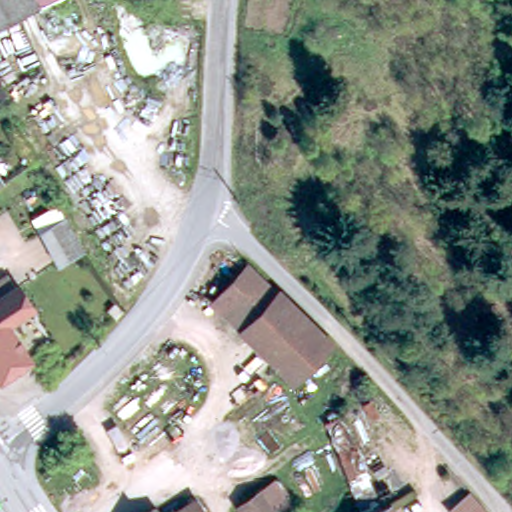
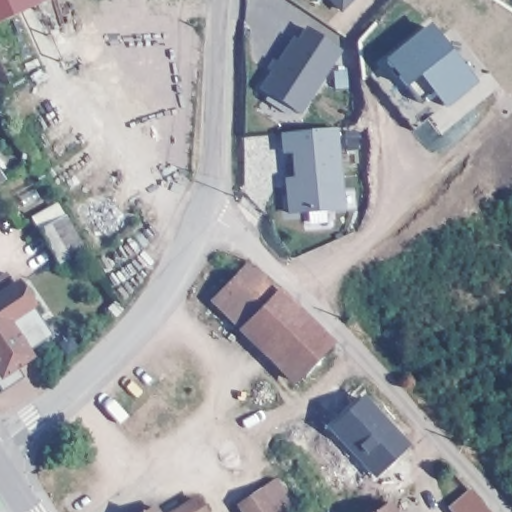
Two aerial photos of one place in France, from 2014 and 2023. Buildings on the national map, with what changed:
unchanged [(50,0),(0,22),(0,0),(50,0)]
new [(327,0),(355,0),(340,15),(327,0)]
new [(275,63),(292,39),(297,41),(305,29),(342,52),(300,117),(257,90),(267,72),(264,70),(270,61),(275,63)]
new [(470,84),(442,107),(431,94),(417,104),(405,87),(385,63),(426,30),(470,84)]
new [(338,129),(345,211),(287,217),(284,180),(292,179),(290,155),(280,156),(278,134),(338,129)]
unchanged [(7,185),(0,190),(0,174),(7,185)]
unchanged [(65,225),(82,255),(55,270),(39,240),(65,225)]
unchanged [(215,302),(250,267),(277,293),(242,329),(215,302)]
unchanged [(5,381),(0,373),(0,303),(2,302),(0,299),(0,283),(12,276),(20,289),(24,287),(37,309),(36,310),(10,326),(34,361),(5,381)]
unchanged [(295,382),(242,329),(277,293),(330,345),(295,382)]
unchanged [(112,311),(118,304),(126,311),(120,317),(112,311)]
unchanged [(242,508),(262,495),(277,486),(295,512),(244,512),(242,508)]
unchanged [(452,510),(474,490),(495,512),(454,512),(452,510)]
unchanged [(383,509),(392,502),(396,512),(379,512),(383,509)]
unchanged [(199,507),(202,503),(208,512),(186,512),(197,505),(199,507)]

